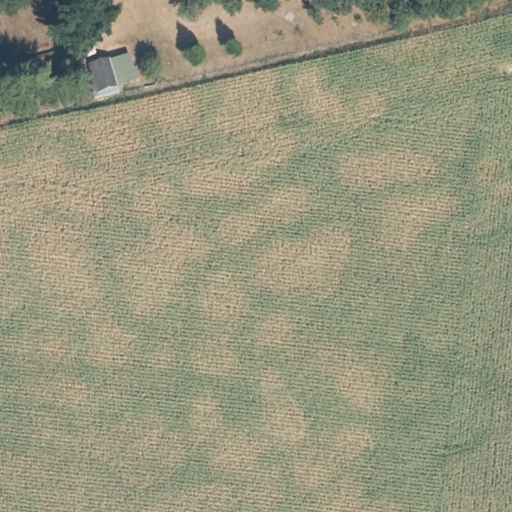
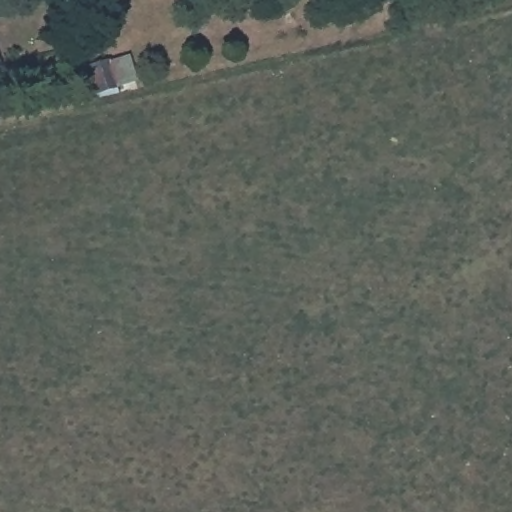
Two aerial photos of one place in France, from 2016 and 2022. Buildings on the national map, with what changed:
unchanged [(121,90),(94,98),(87,68),(113,61),(121,90)]

